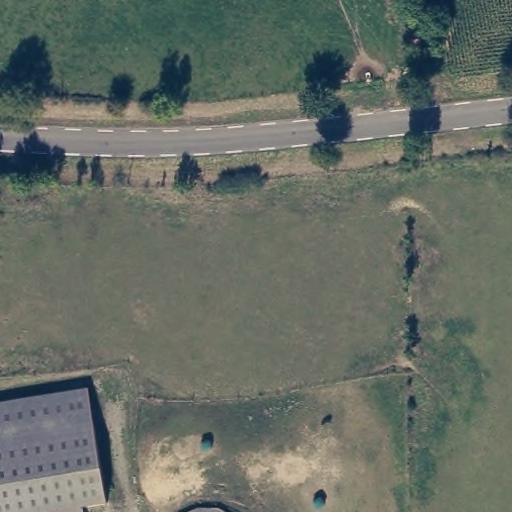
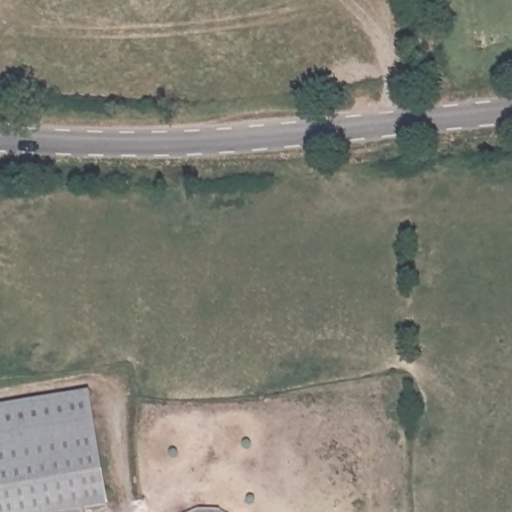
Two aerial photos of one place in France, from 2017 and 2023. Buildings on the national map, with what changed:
unchanged [(421,35),(422,49),(407,51),(405,37),(421,35)]
unchanged [(84,391),(90,425),(15,437),(10,403),(84,391)]
unchanged [(10,403),(15,437),(90,425),(103,507),(78,511),(71,512),(0,512),(0,405),(10,403)]
unchanged [(78,512),(71,512),(78,511),(78,512)]

